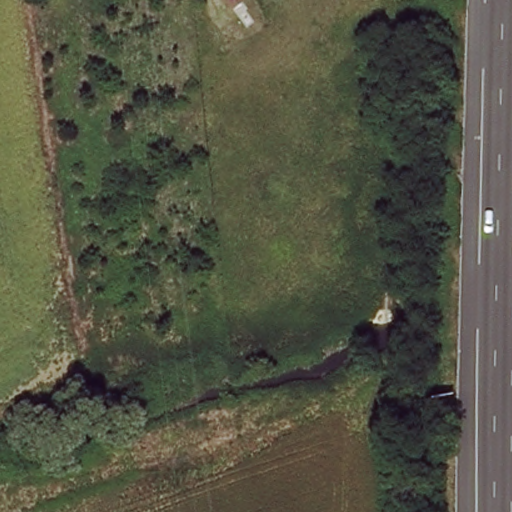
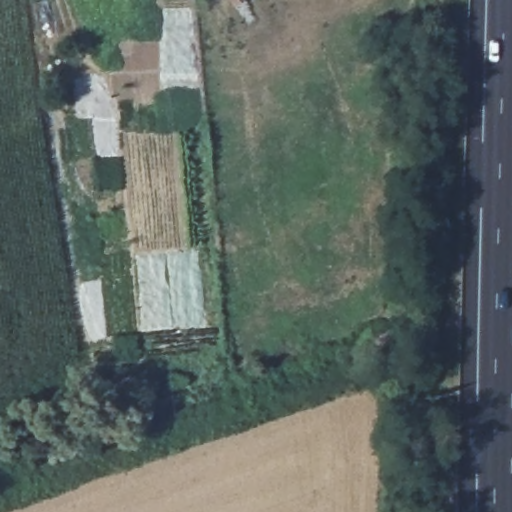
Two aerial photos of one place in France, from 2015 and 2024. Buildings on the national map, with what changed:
unchanged [(226,0),(245,0),(235,11),(226,0)]

